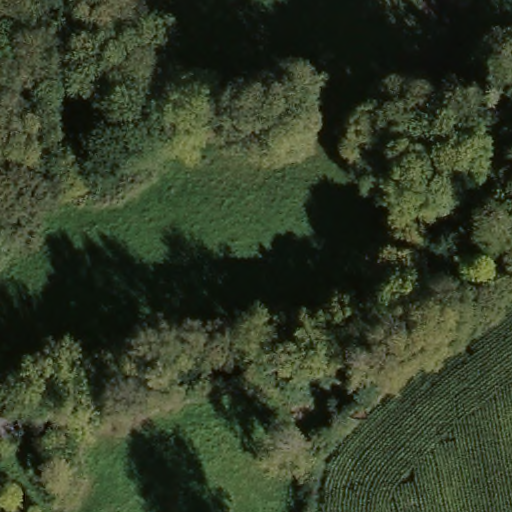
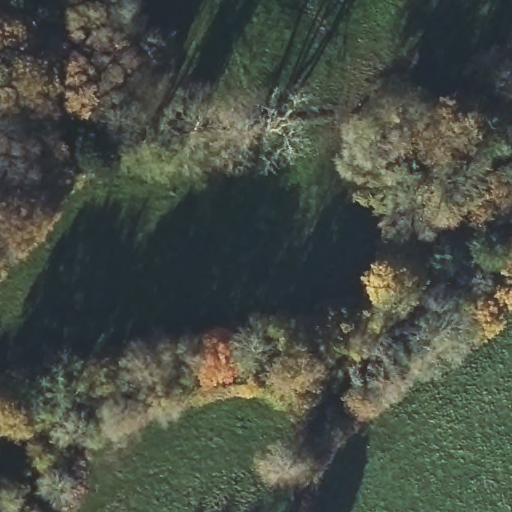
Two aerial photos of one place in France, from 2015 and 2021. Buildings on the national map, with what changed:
unchanged [(3,441),(3,457),(0,457),(0,409),(38,402),(41,411),(43,435),(3,441)]

